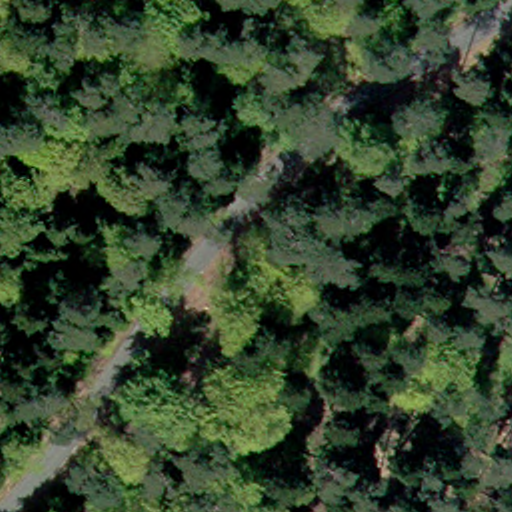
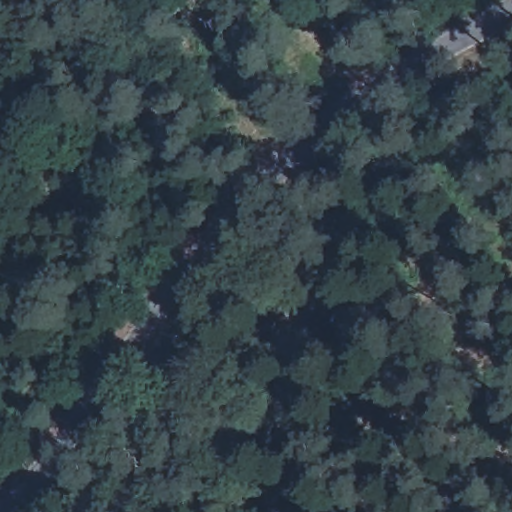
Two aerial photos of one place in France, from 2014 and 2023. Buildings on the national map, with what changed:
unchanged [(310,0),(321,0),(340,23),(320,39),(296,12),(310,0)]

